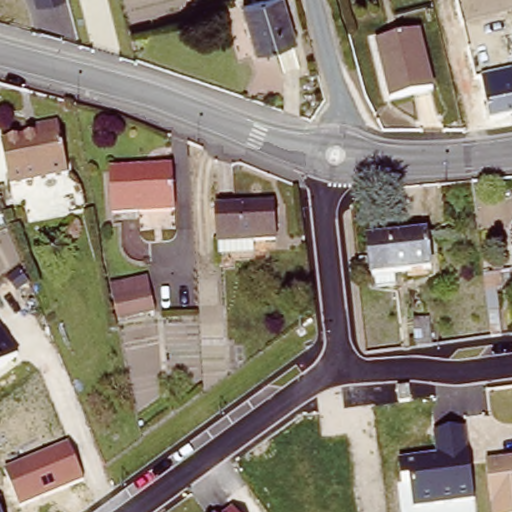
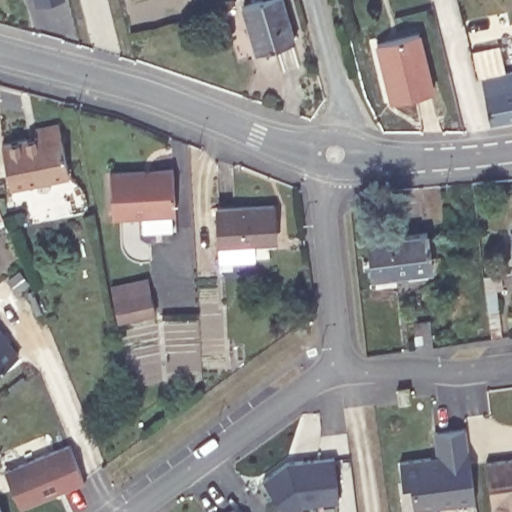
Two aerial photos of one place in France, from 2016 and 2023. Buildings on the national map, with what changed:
unchanged [(35,0),(55,0),(37,5),(35,0)]
unchanged [(282,0),(293,42),(255,54),(244,9),(268,2),(268,0),(282,0)]
unchanged [(418,34),(423,59),(432,90),(390,101),(377,43),(393,40),(404,37),(418,34)]
unchanged [(503,75),(512,73),(512,115),(487,117),(482,92),(489,92),(492,92),(492,80),(503,79),(503,75)]
unchanged [(35,146),(32,135),(55,130),(65,180),(8,192),(0,152),(35,146)]
unchanged [(167,172),(168,179),(172,214),(112,220),(108,179),(167,172)]
unchanged [(270,205),(274,241),(250,243),(252,261),(220,263),(215,210),(270,205)]
unchanged [(423,227),(429,270),(372,277),(367,235),(423,227)]
unchanged [(148,273),(157,315),(121,323),(111,283),(148,273)]
unchanged [(430,317),(434,344),(421,346),(418,318),(430,317)]
unchanged [(0,367),(0,326),(20,351),(0,367)]
unchanged [(412,387),(413,402),(402,403),(400,387),(412,387)]
unchanged [(437,456),(434,432),(467,428),(477,498),(417,506),(415,482),(403,483),(400,461),(437,456)]
unchanged [(5,470),(68,445),(83,482),(20,508),(5,470)]
unchanged [(512,457),(512,512),(493,512),(488,460),(512,457)]
new [(287,464),(332,459),(337,503),(303,507),(297,512),(286,512),(264,482),(287,464)]
unchanged [(236,512),(227,512),(233,508),(236,512)]
unchanged [(0,509),(1,512),(0,512),(0,509)]

